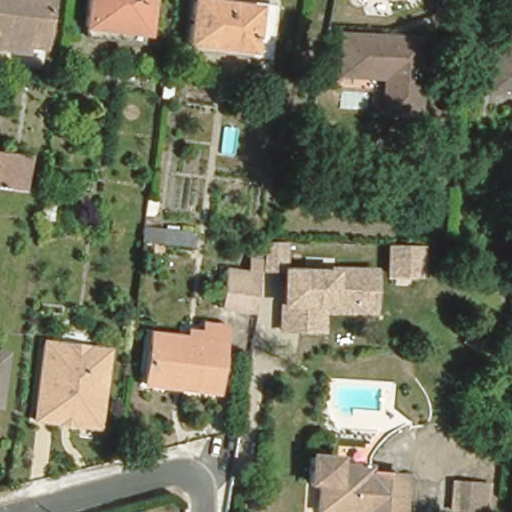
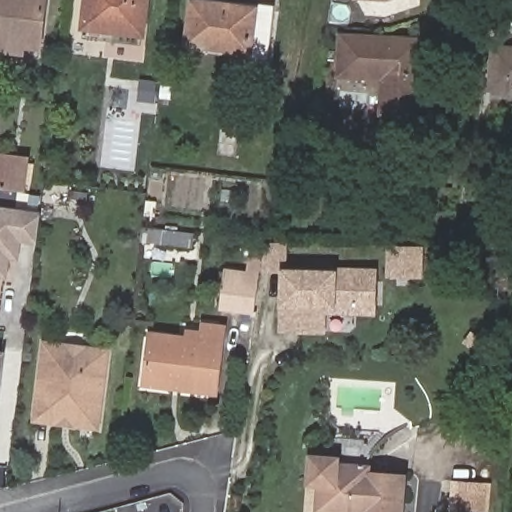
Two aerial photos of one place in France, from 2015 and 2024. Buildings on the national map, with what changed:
unchanged [(22,46),(21,53),(0,50),(0,0),(45,0),(39,49),(22,46)]
unchanged [(83,29),(87,0),(147,0),(142,36),(83,29)]
unchanged [(265,54),(187,44),(192,0),(196,0),(270,10),(265,54)]
unchanged [(376,0),(390,0),(386,1),(376,0)]
unchanged [(420,40),(416,116),(380,114),(382,78),(338,75),(341,35),(420,40)]
unchanged [(512,90),(501,89),(504,47),(512,47),(512,90)]
unchanged [(172,86),(171,99),(162,98),(164,85),(172,86)]
unchanged [(257,121),(251,128),(242,120),(248,113),(257,121)]
unchanged [(0,183),(0,149),(16,151),(32,154),(28,187),(12,185),(0,183)]
new [(36,245),(21,243),(18,260),(9,259),(6,278),(0,278),(0,207),(40,212),(36,245)]
unchanged [(142,229),(192,234),(191,245),(141,240),(142,229)]
unchanged [(378,317),(328,316),(327,334),(279,333),(278,273),(263,272),(264,240),(290,241),(290,266),(380,270),(378,317)]
unchanged [(423,280),(387,279),(388,243),(425,245),(423,280)]
unchanged [(211,302),(217,263),(237,266),(239,253),(251,255),(249,269),(252,270),(246,306),(211,302)]
unchanged [(223,327),(215,392),(144,385),(150,334),(186,338),(187,331),(201,333),(203,325),(223,327)]
unchanged [(64,350),(63,361),(87,363),(88,352),(107,355),(98,432),(72,429),(73,422),(60,421),(59,427),(34,425),(43,347),(64,350)]
unchanged [(2,355),(0,372),(0,354),(2,355)]
unchanged [(408,477),(405,512),(327,512),(321,511),(323,485),(314,485),(316,457),(341,459),(342,451),(374,455),(373,466),(373,475),(408,477)]
unchanged [(486,485),(484,512),(463,512),(455,511),(458,482),(486,485)]

